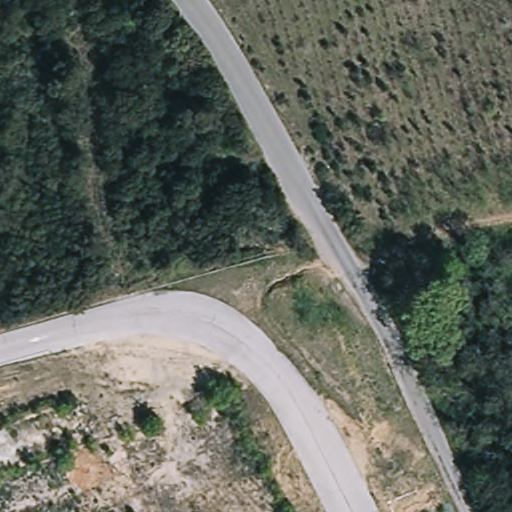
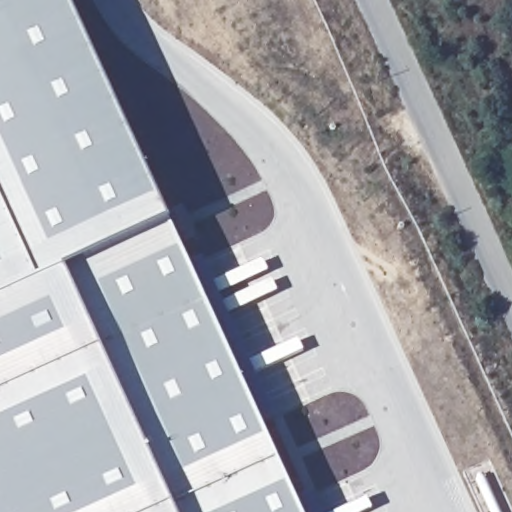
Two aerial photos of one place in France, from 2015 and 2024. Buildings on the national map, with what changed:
new [(64,0),(169,230),(299,512),(0,512),(0,0),(64,0)]

